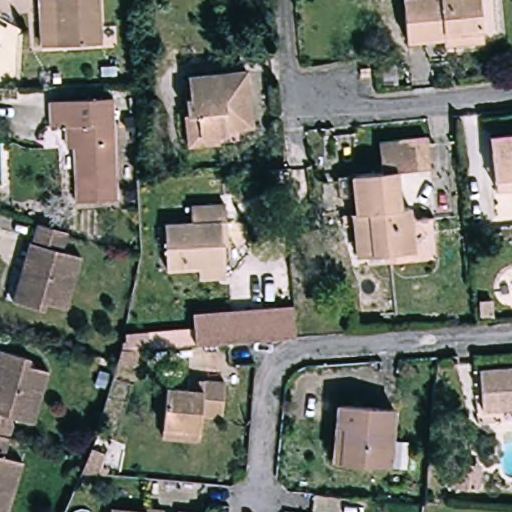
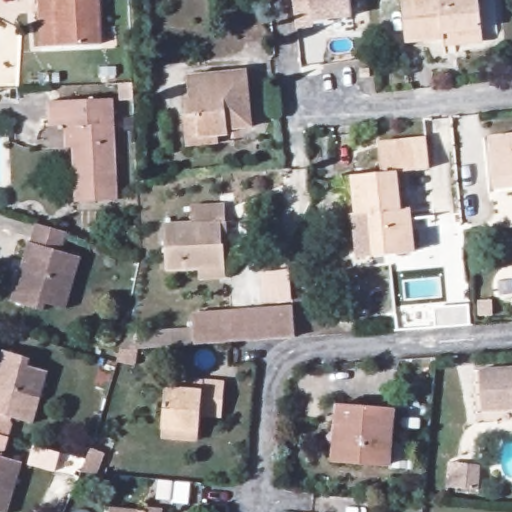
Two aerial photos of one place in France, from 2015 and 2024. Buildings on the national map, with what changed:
unchanged [(38,0),(96,0),(98,42),(39,45),(38,0)]
new [(314,24),(296,25),(294,0),(350,0),(352,15),(328,17),(329,20),(313,22),(314,24)]
unchanged [(446,36),(409,43),(400,1),(403,0),(478,0),(483,22),(485,35),(447,42),(446,36)]
unchanged [(247,67),(250,124),(227,125),(226,131),(200,133),(198,111),(185,112),(184,95),(189,94),(188,72),(247,67)]
unchanged [(76,201),(74,147),(66,147),(65,125),(52,125),(51,100),(103,98),(113,98),(114,121),(116,200),(76,201)]
unchanged [(494,175),(492,134),(512,132),(512,189),(496,191),(494,175)]
unchanged [(355,212),(358,211),(354,172),(383,170),(380,141),(428,135),(431,164),(398,167),(402,205),(411,205),(415,250),(376,254),(360,257),(355,212)]
unchanged [(197,281),(197,271),(165,268),(170,223),(196,226),(198,207),(232,211),(230,229),(225,229),(223,250),(225,250),(223,272),(223,283),(197,281)]
unchanged [(26,258),(32,240),(37,241),(41,222),(71,232),(66,251),(82,256),(66,307),(48,302),(45,309),(22,302),(14,300),(26,258)]
unchanged [(479,301),(490,300),(491,315),(480,316),(479,301)]
unchanged [(230,341),(197,343),(194,313),(292,307),(296,337),(230,341)]
unchanged [(48,372),(33,422),(18,418),(11,438),(0,435),(0,352),(1,350),(9,352),(32,358),(30,366),(48,372)]
unchanged [(482,407),(480,368),(512,367),(512,407),(482,407)]
unchanged [(165,435),(165,427),(169,386),(188,387),(190,377),(203,379),(225,381),(223,415),(202,414),(201,429),(200,437),(165,435)]
unchanged [(328,426),(333,426),(335,407),(389,410),(385,467),(337,464),(326,463),(328,426)]
unchanged [(6,457),(23,463),(7,512),(0,512),(0,435),(11,438),(6,457)]
unchanged [(485,463),(483,488),(455,486),(457,461),(485,463)]
unchanged [(109,511),(118,512),(109,512),(109,511)]

